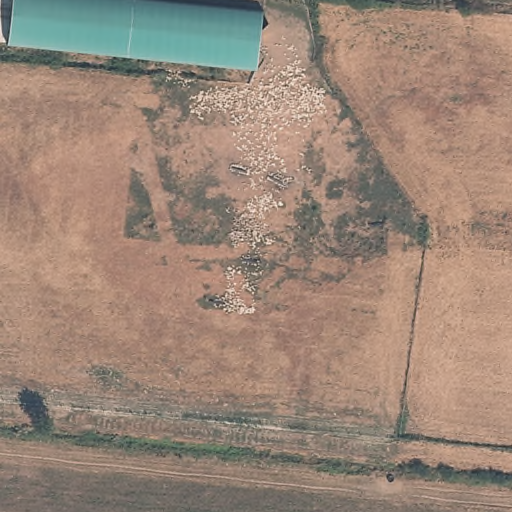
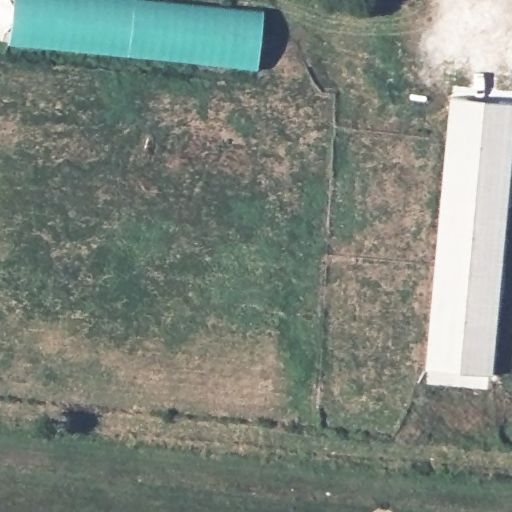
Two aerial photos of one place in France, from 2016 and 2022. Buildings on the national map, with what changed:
unchanged [(9,45),(13,0),(151,0),(261,10),(257,69),(9,45)]
new [(446,96),(512,102),(512,136),(490,375),(422,368),(446,96)]

